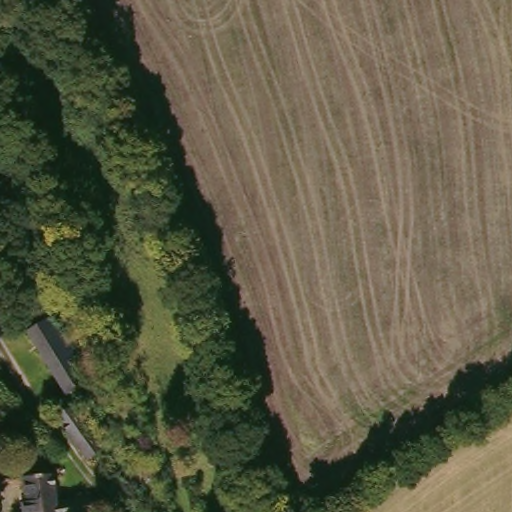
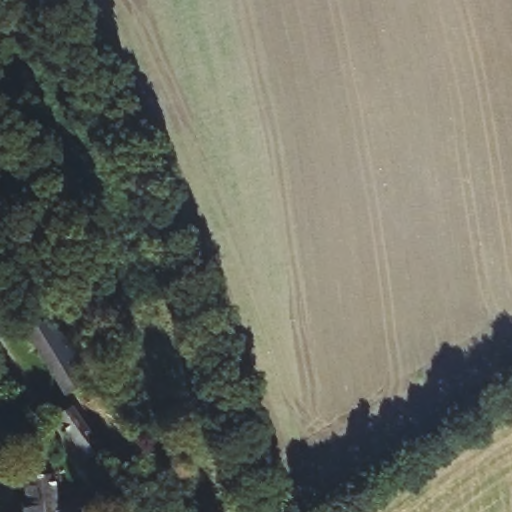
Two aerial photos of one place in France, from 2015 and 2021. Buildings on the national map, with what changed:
unchanged [(55,314),(93,376),(63,391),(28,330),(55,314)]
unchanged [(64,416),(76,406),(94,428),(109,447),(93,458),(60,419),(64,416)]
unchanged [(97,512),(57,512),(55,501),(94,495),(97,512)]

